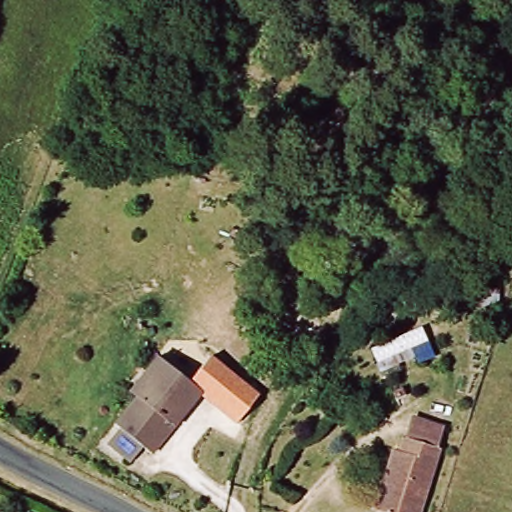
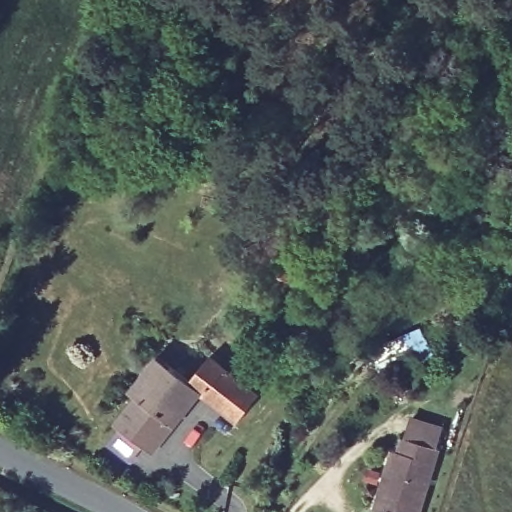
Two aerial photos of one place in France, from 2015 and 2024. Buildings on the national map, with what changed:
unchanged [(365,348),(421,321),(435,352),(378,378),(365,348)]
unchanged [(210,351),(260,389),(235,422),(199,394),(185,381),(210,351)]
unchanged [(139,447),(110,419),(133,394),(127,388),(159,355),(171,367),(185,381),(199,394),(168,427),(144,453),(139,447)]
unchanged [(442,421),(437,439),(407,431),(413,412),(442,421)]
unchanged [(402,447),(407,431),(443,442),(420,512),(402,512),(378,504),(397,446),(402,447)]

